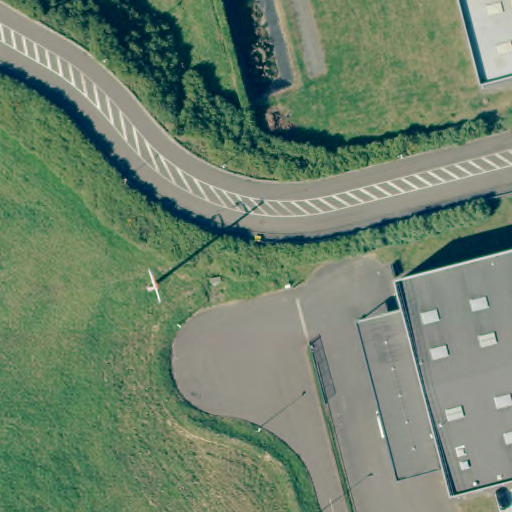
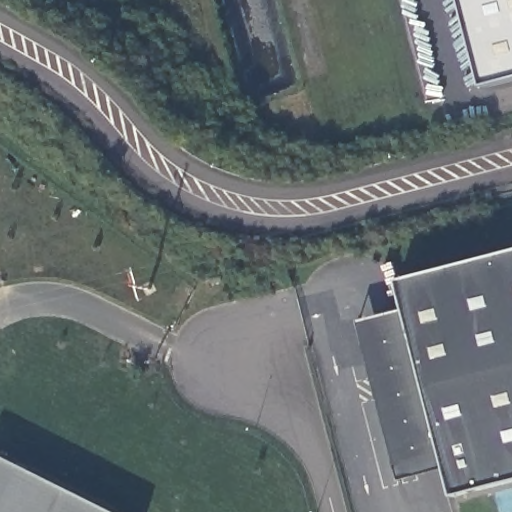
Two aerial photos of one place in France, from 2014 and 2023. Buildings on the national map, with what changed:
unchanged [(485,88),(462,0),(469,0),(491,87),(485,88)]
unchanged [(491,87),(469,0),(512,0),(512,81),(491,87)]
unchanged [(446,475),(422,380),(405,314),(398,286),(512,257),(512,488),(454,502),(446,475)]
unchanged [(399,487),(357,327),(405,314),(422,380),(446,475),(399,487)]
new [(0,512),(0,454),(113,512),(0,512)]

